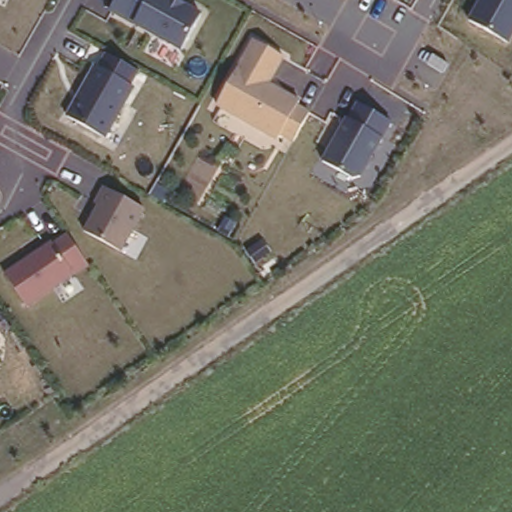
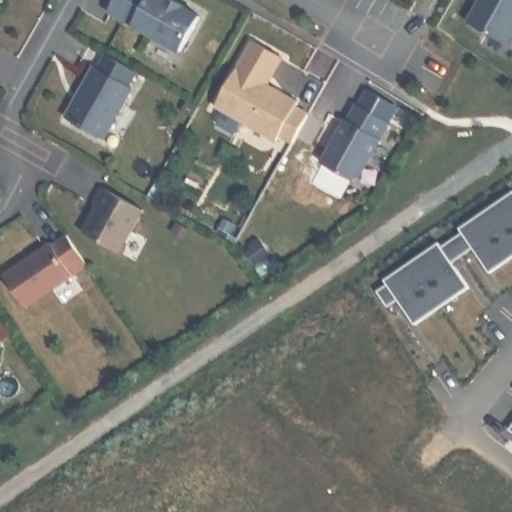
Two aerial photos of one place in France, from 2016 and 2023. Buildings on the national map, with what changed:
unchanged [(179,47),(109,12),(116,0),(174,0),(196,13),(179,47)]
unchanged [(512,0),(512,37),(508,44),(468,21),(479,0),(512,0)]
unchanged [(284,58),(269,85),(299,100),(296,106),(310,114),(297,144),(281,136),(280,139),(214,106),(249,42),(284,58)]
unchanged [(132,86),(104,137),(66,118),(92,69),(132,86)]
unchanged [(387,120),(358,179),(321,159),(352,100),(387,120)]
unchanged [(144,208),(124,250),(84,233),(104,189),(144,208)]
new [(475,244),(453,259),(471,283),(417,319),(399,296),(389,302),(380,288),(390,280),(387,275),(441,238),(444,243),(465,228),(462,224),(512,189),(512,255),(492,269),(475,244)]
unchanged [(86,268),(23,306),(2,270),(64,233),(86,268)]
unchanged [(1,343),(0,343),(0,340),(1,343)]
new [(512,427),(512,431),(510,429),(512,427)]

